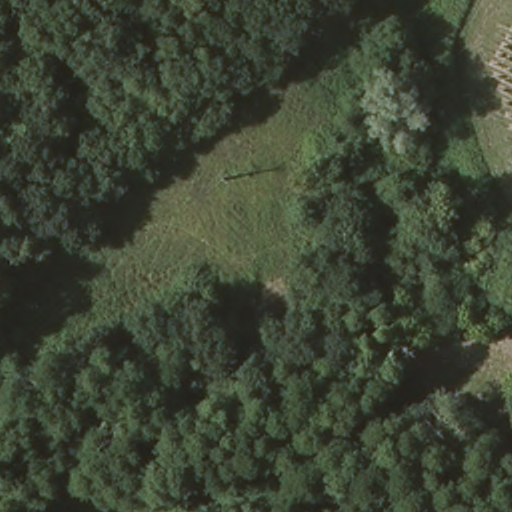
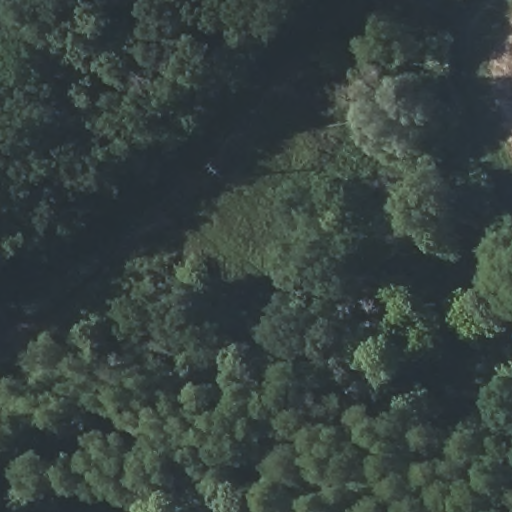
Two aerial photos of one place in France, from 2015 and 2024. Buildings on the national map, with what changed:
[]

